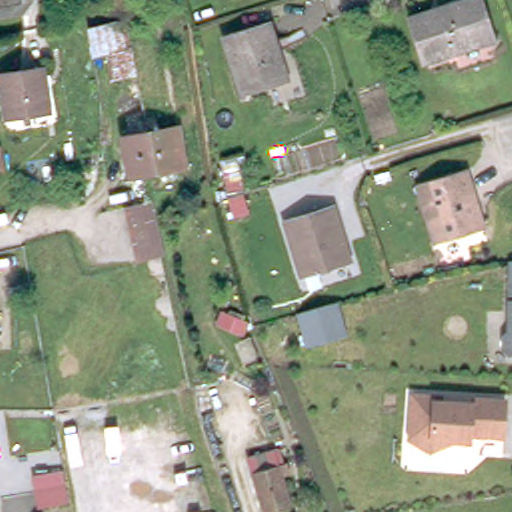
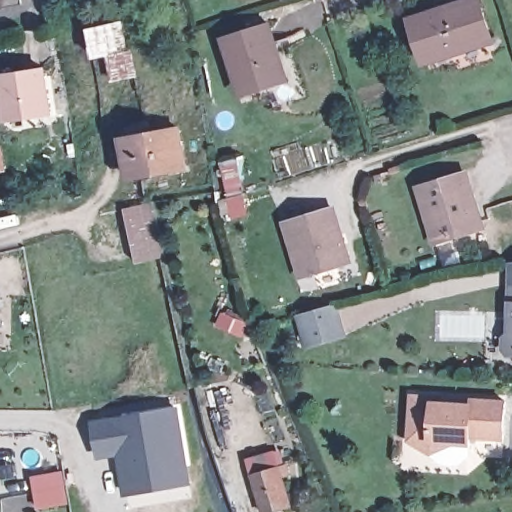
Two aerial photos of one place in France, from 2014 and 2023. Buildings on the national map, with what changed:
unchanged [(20,4),(0,8),(0,0),(19,0),(20,4)]
unchanged [(469,0),(479,0),(492,40),(426,62),(413,19),(469,0)]
unchanged [(265,20),(282,73),(239,87),(222,34),(265,20)]
unchanged [(120,22),(127,52),(131,51),(136,74),(114,79),(108,53),(93,57),(88,30),(120,22)]
unchanged [(42,67),(48,112),(5,118),(0,77),(0,73),(42,67)]
unchanged [(179,128),(185,167),(128,177),(121,139),(179,128)]
unchanged [(3,170),(0,170),(0,147),(3,170)]
unchanged [(465,169),(482,224),(434,238),(418,184),(465,169)]
unchanged [(244,182),(226,186),(224,174),(242,171),(244,182)]
unchanged [(247,219),(230,223),(225,204),(242,199),(247,219)]
unchanged [(137,265),(126,213),(125,211),(154,204),(166,258),(137,265)]
unchanged [(332,205),(350,261),(301,275),(285,220),(332,205)]
unchanged [(508,261),(512,261),(512,291),(507,291),(508,261)]
unchanged [(498,350),(498,340),(505,334),(506,301),(507,291),(512,291),(512,356),(509,356),(498,350)]
unchanged [(344,333),(308,343),(299,312),(301,311),(335,302),(344,333)]
unchanged [(241,323),(227,318),(223,317),(226,305),(230,306),(245,311),(241,323)]
unchanged [(433,393),(433,399),(470,401),(470,394),(503,396),(501,434),(468,432),(466,461),(430,459),(431,450),(407,436),(410,392),(433,393)]
new [(175,408),(187,482),(140,490),(133,449),(98,455),(93,422),(175,408)]
unchanged [(265,512),(253,473),(249,456),(273,448),(278,466),(290,506),(270,512),(265,512)]
unchanged [(41,506),(38,492),(35,479),(59,474),(61,488),(64,502),(41,506)]

